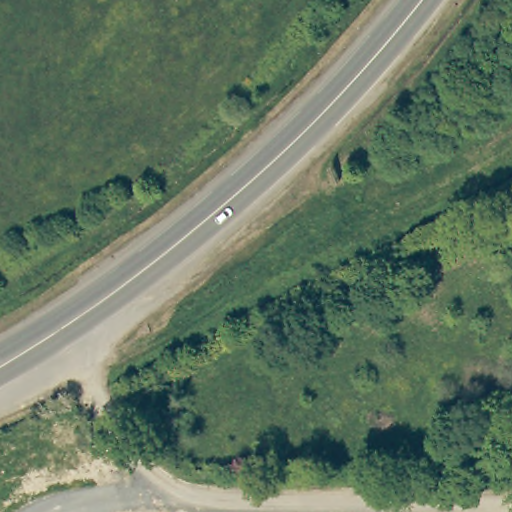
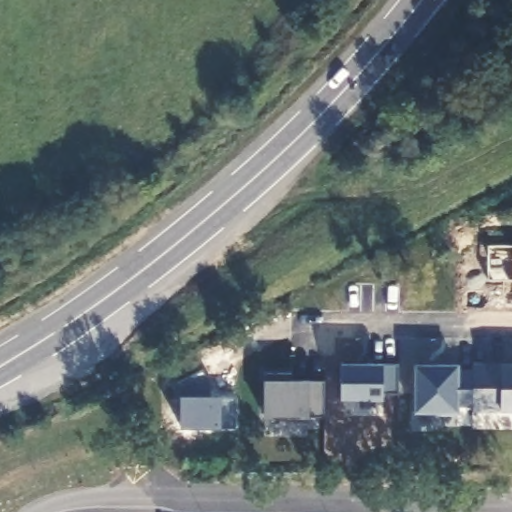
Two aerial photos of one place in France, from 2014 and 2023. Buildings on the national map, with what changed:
new [(487,244),(512,244),(512,279),(486,279),(487,244)]
new [(397,392),(381,393),(381,398),(339,398),(340,362),(397,363),(397,392)]
new [(413,363),(456,363),(456,369),(471,369),(471,404),(456,403),(456,413),(435,413),(435,410),(413,409),(413,363)]
new [(471,404),(471,369),(471,363),(512,364),(512,409),(471,408),(471,404)]
new [(234,426),(180,425),(180,394),(175,381),(202,368),(209,381),(209,394),(234,394),(234,426)]
new [(290,381),(322,382),(322,415),(306,416),(306,424),(283,424),(283,417),(260,417),(261,373),(290,373),(290,381)]

